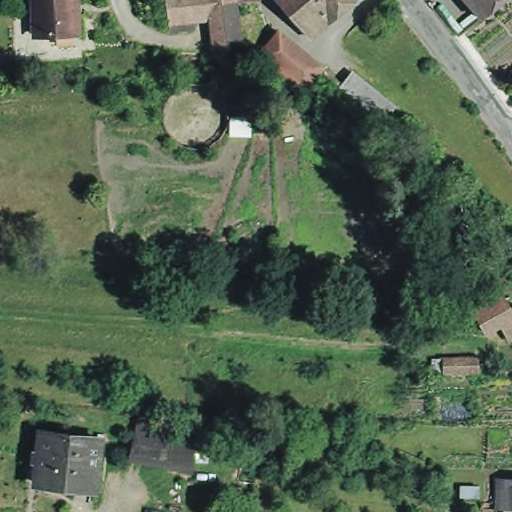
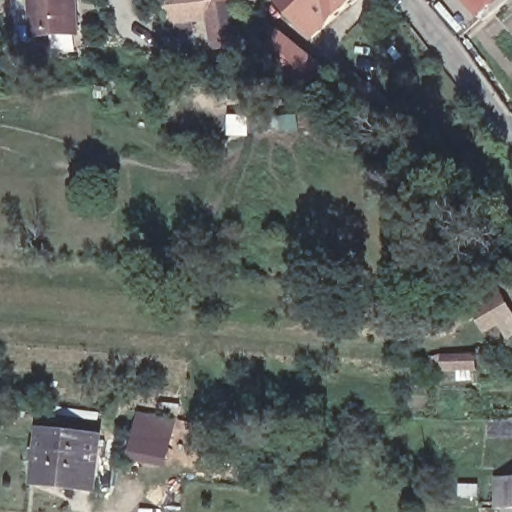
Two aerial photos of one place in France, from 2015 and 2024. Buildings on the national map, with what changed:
unchanged [(45,34),(40,0),(77,0),(81,29),(45,34)]
unchanged [(206,0),(206,4),(208,27),(177,29),(163,30),(162,25),(160,0),(206,0)]
unchanged [(206,4),(206,0),(248,0),(231,1),(206,4)]
unchanged [(350,0),(305,39),(270,0),(350,0)]
unchanged [(468,0),(497,0),(481,14),(468,0)]
unchanged [(208,27),(206,4),(231,1),(235,47),(210,49),(209,39),(208,27)]
unchanged [(324,67),(305,91),(258,54),(277,28),(324,67)]
unchanged [(489,337),(480,320),(509,304),(512,309),(512,344),(504,329),(489,337)]
unchanged [(477,358),(477,372),(444,372),(435,372),(435,358),(444,358),(477,358)]
unchanged [(184,468),(182,475),(157,469),(140,466),(123,463),(126,446),(129,434),(130,427),(165,434),(165,432),(189,436),(188,440),(199,442),(195,471),(184,468)]
unchanged [(100,434),(94,485),(37,479),(39,459),(33,459),(34,447),(40,447),(42,428),(100,434)]
unchanged [(497,481),(512,481),(512,512),(505,512),(505,510),(497,511),(497,481)]

